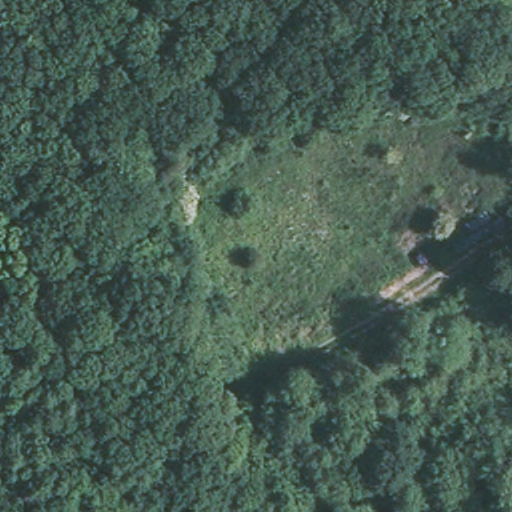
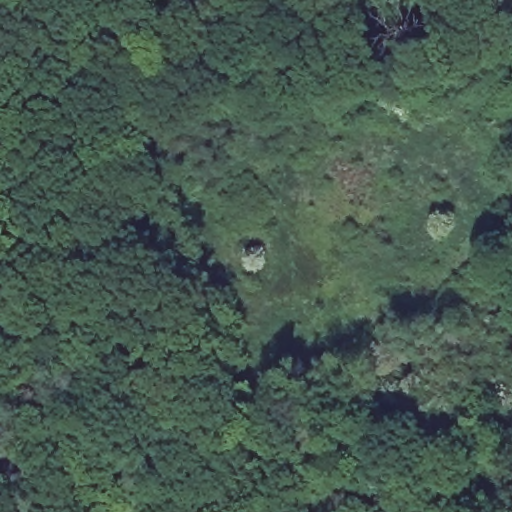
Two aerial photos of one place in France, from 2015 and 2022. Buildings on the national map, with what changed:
[]

